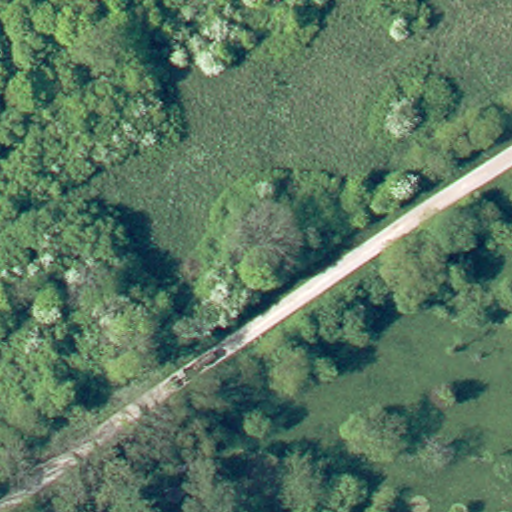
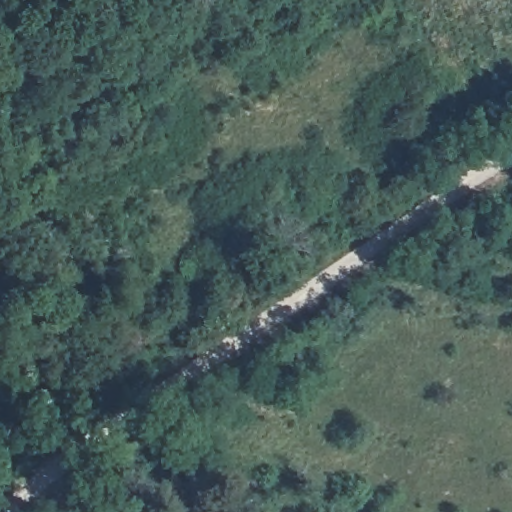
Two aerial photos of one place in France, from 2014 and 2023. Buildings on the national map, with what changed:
unchanged [(42,401),(21,415),(20,412),(0,425),(0,367),(15,358),(42,401)]

